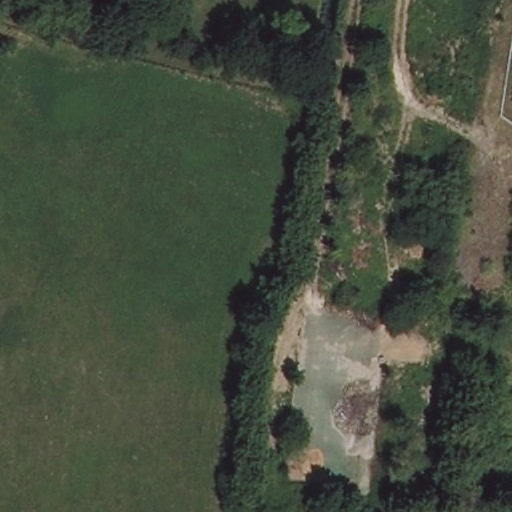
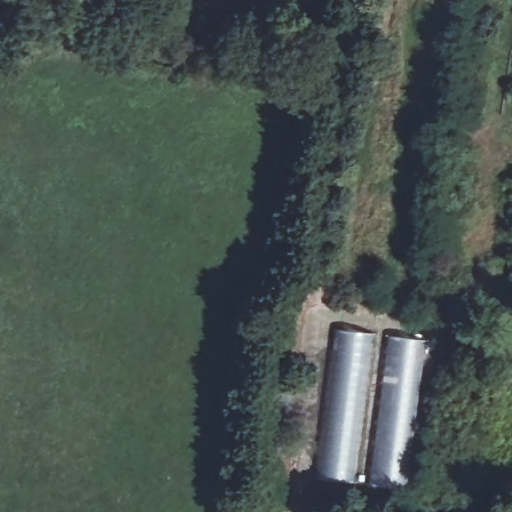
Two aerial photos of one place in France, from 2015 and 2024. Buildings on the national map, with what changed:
new [(337,328),(372,333),(353,484),(317,480),(337,328)]
new [(404,373),(410,365),(414,340),(427,342),(405,483),(392,481),(395,458),(380,446),(374,445),(384,375),(389,376),(404,373)]

